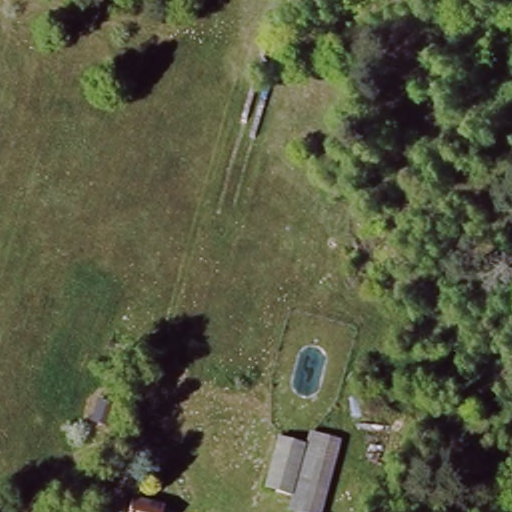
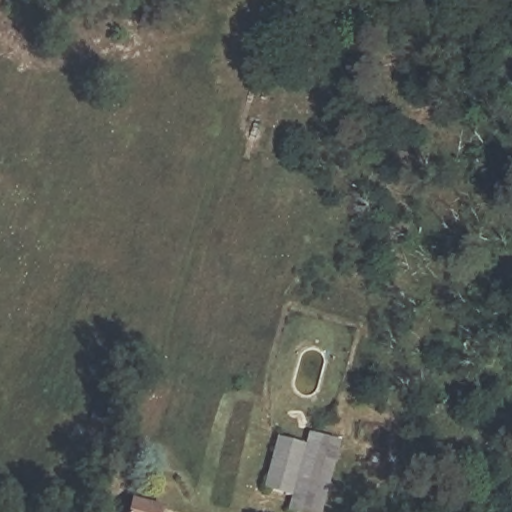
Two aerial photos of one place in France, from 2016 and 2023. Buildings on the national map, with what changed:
unchanged [(344,443),(325,512),(289,512),(294,501),(264,494),(276,439),(306,445),(310,431),(344,443)]
unchanged [(159,512),(92,512),(94,493),(161,501),(159,512)]

